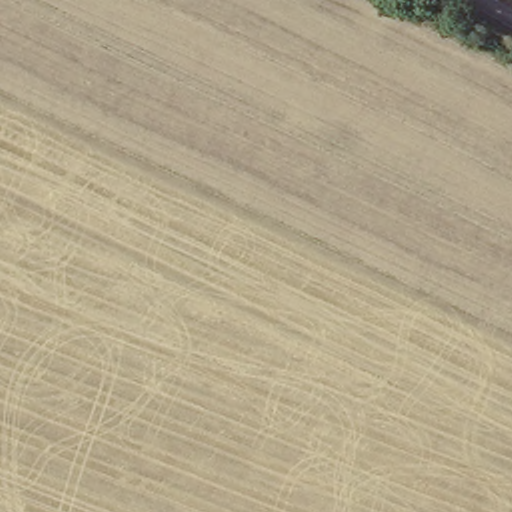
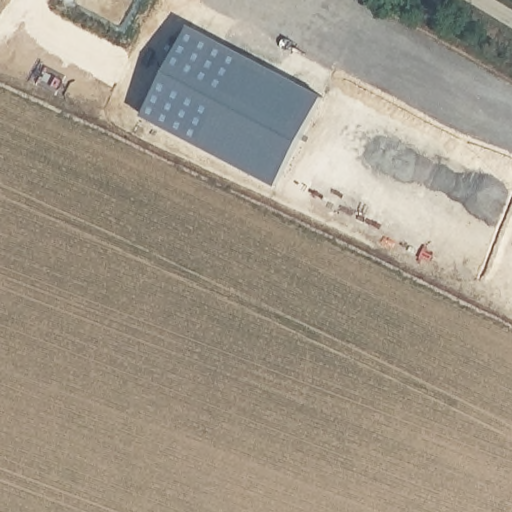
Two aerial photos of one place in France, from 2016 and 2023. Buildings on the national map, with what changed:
new [(316,95),(276,173),(142,107),(182,24),(316,95)]

